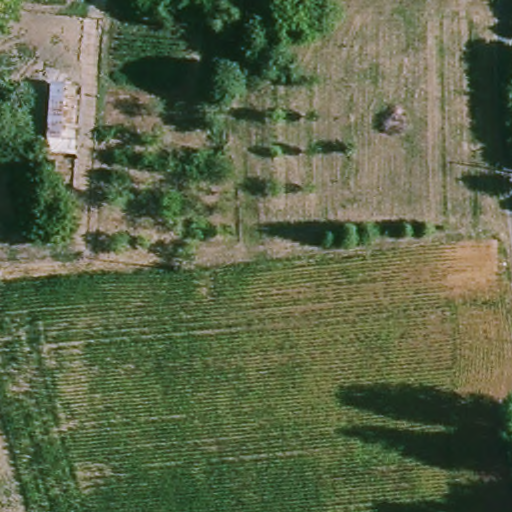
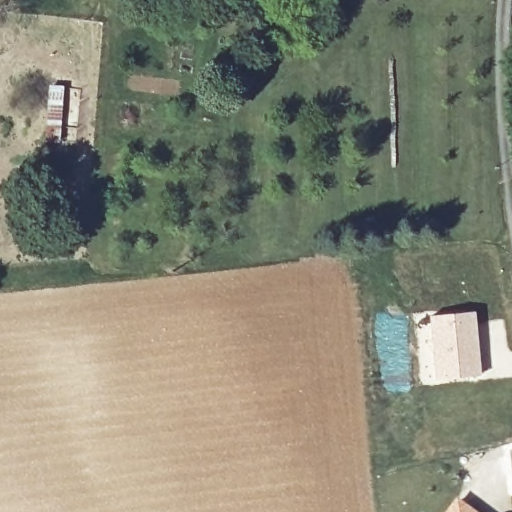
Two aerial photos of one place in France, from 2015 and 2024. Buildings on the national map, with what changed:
unchanged [(85,90),(80,154),(53,152),(60,88),(85,90)]
new [(473,312),(480,374),(435,379),(428,316),(473,312)]
new [(460,500),(477,512),(451,512),(460,500)]

